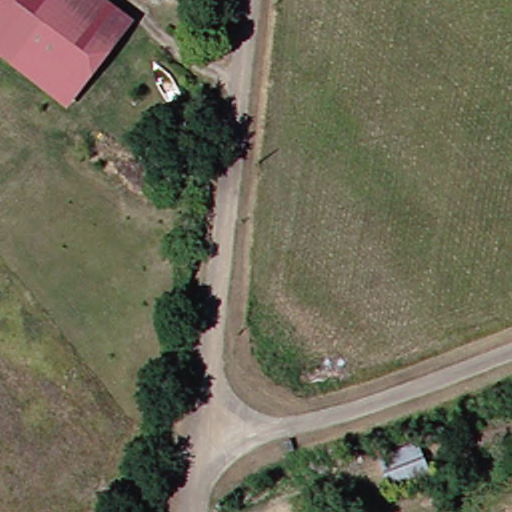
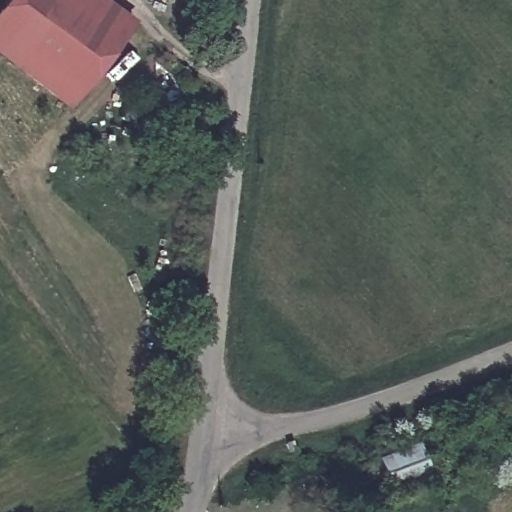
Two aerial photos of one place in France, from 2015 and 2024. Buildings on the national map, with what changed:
unchanged [(70,105),(0,48),(0,12),(10,0),(110,0),(136,20),(122,39),(83,88),(74,101),(70,105)]
unchanged [(399,493),(383,457),(423,443),(438,479),(399,493)]

